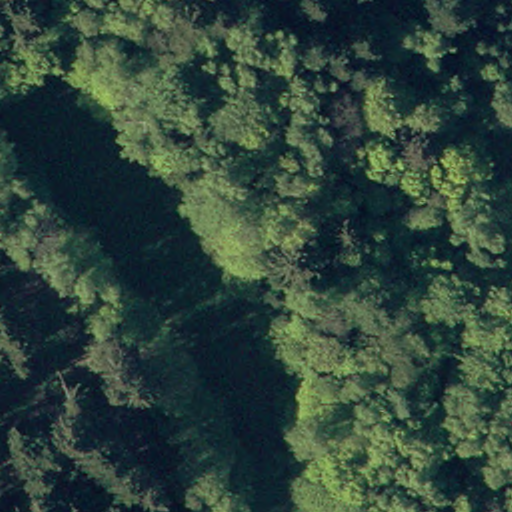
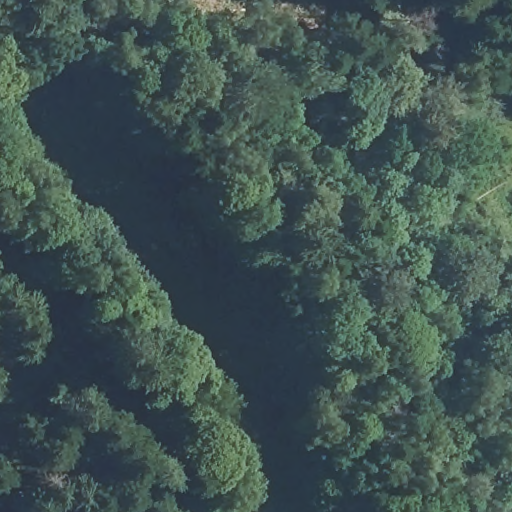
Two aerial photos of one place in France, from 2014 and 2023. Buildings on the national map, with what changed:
[]

